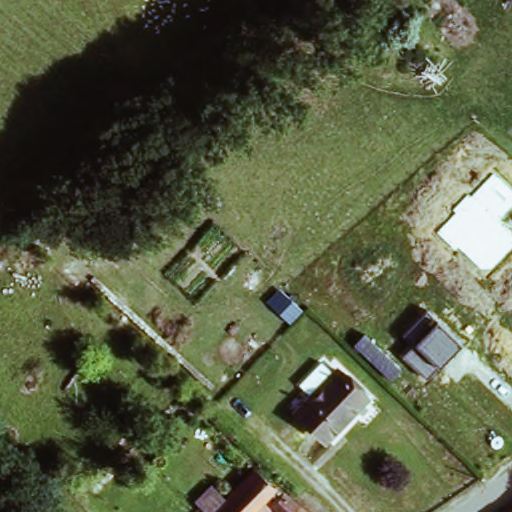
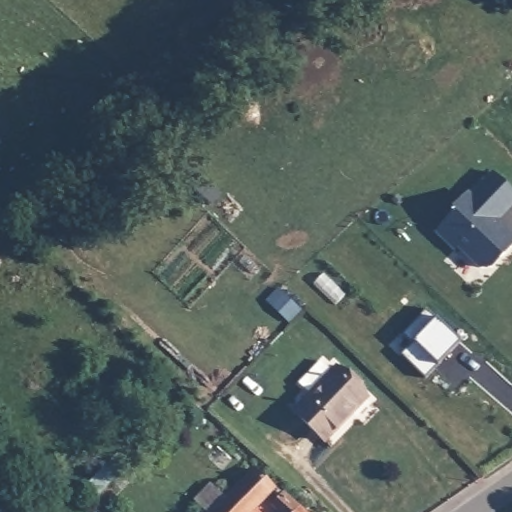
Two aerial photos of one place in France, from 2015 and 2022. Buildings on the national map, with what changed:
new [(512,191),(512,209),(500,223),(512,235),(512,255),(494,273),(484,272),(461,251),(457,254),(435,234),(493,173),(512,191)]
unchanged [(403,356),(416,344),(405,335),(427,312),(459,344),(426,377),(403,356)]
unchanged [(325,442),(294,411),(311,394),(299,383),(322,360),(333,371),(337,367),(369,397),(325,442)]
unchanged [(256,470),(275,488),(251,512),(209,512),(197,500),(211,486),(224,500),(256,470)]
unchanged [(273,503),(282,493),(304,512),(282,512),(273,503)]

